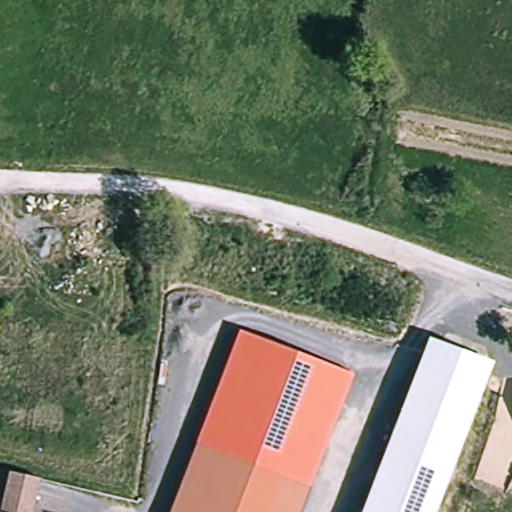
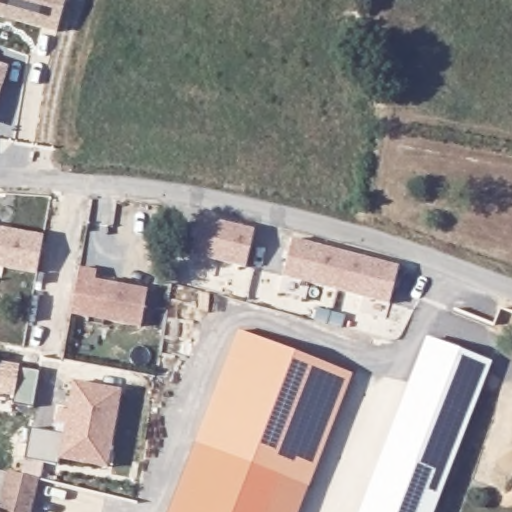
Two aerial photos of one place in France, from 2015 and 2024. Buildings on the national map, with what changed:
new [(0,17),(0,0),(65,0),(56,32),(0,17)]
new [(7,69),(0,92),(0,66),(7,69)]
new [(247,269),(192,256),(200,217),(255,230),(247,269)]
new [(44,236),(38,273),(0,267),(0,228),(44,236)]
new [(400,265),(390,304),(282,277),(292,238),(400,265)]
new [(97,270),(96,279),(148,288),(141,327),(71,314),(80,267),(97,270)]
unchanged [(239,330),(354,373),(310,484),(195,443),(239,330)]
unchanged [(429,512),(364,512),(430,342),(487,363),(429,512)]
new [(20,365),(20,369),(40,372),(33,407),(12,403),(13,397),(0,394),(0,362),(20,365)]
new [(62,435),(64,426),(56,425),(60,409),(67,410),(72,381),(123,390),(108,469),(60,460),(58,466),(25,460),(30,428),(62,435)]
unchanged [(310,484),(299,512),(169,512),(195,443),(310,484)]
unchanged [(41,479),(34,512),(1,512),(10,472),(41,479)]

